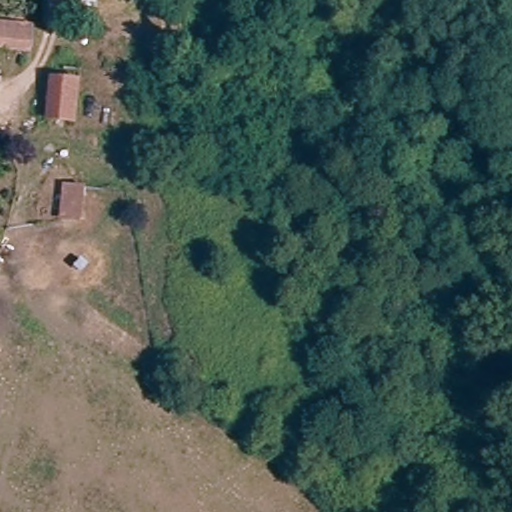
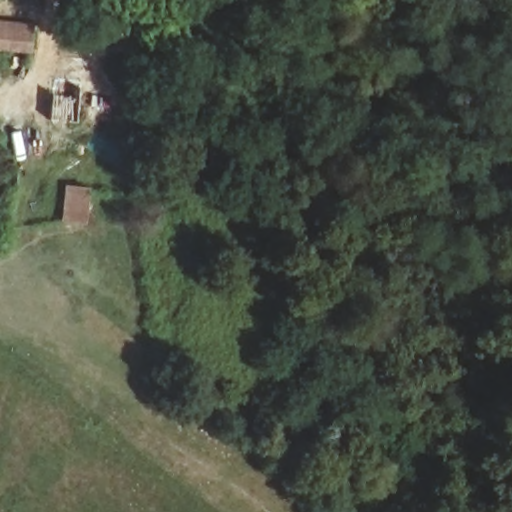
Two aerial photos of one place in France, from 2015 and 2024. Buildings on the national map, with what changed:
unchanged [(40,51),(0,48),(0,20),(40,22),(40,51)]
unchanged [(85,97),(79,127),(51,122),(63,63),(100,70),(96,98),(85,97)]
unchanged [(89,187),(85,224),(60,221),(65,185),(89,187)]

